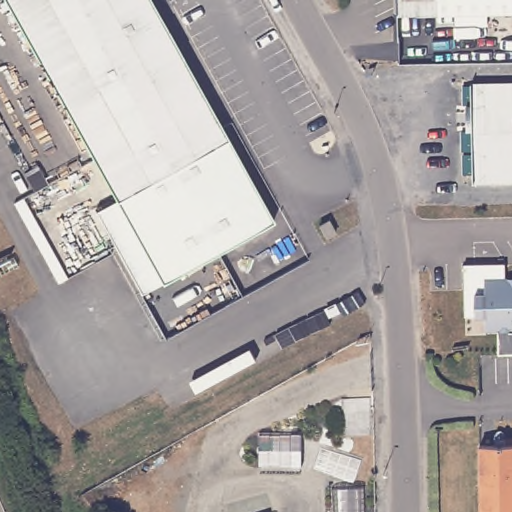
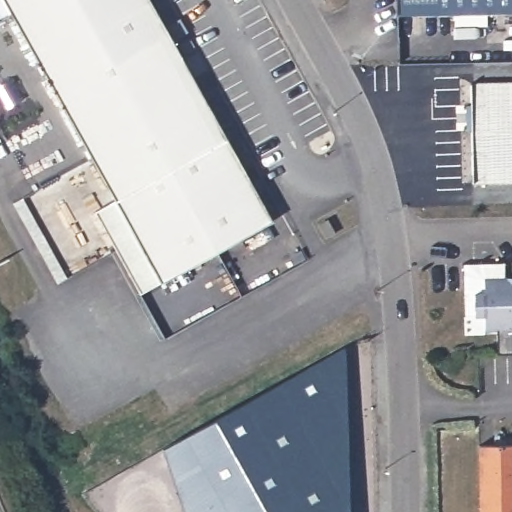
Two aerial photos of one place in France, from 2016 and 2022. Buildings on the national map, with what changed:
unchanged [(154,282),(108,201),(0,9),(0,0),(143,0),(266,219),(154,282)]
unchanged [(396,0),(512,0),(512,8),(486,9),(486,21),(455,22),(454,9),(396,10),(396,0)]
unchanged [(512,182),(473,183),(472,130),(467,130),(467,104),(472,104),(472,81),(512,81),(512,182)]
unchanged [(134,293),(89,212),(108,201),(154,282),(134,293)]
unchanged [(319,225),(329,220),(335,230),(326,235),(319,225)]
unchanged [(493,334),(480,335),(480,320),(460,321),(458,270),(498,269),(499,284),(512,284),(512,358),(494,358),(493,334)]
new [(346,346),(350,512),(183,512),(161,446),(346,346)]
demolished [(302,430),(300,472),(256,473),(256,429),(302,430)]
unchanged [(490,448),(490,443),(500,443),(512,442),(512,507),(476,508),(476,448),(490,448)]
demolished [(362,486),(363,512),(332,512),(331,489),(362,486)]
unchanged [(476,508),(512,507),(512,512),(477,512),(476,508)]

